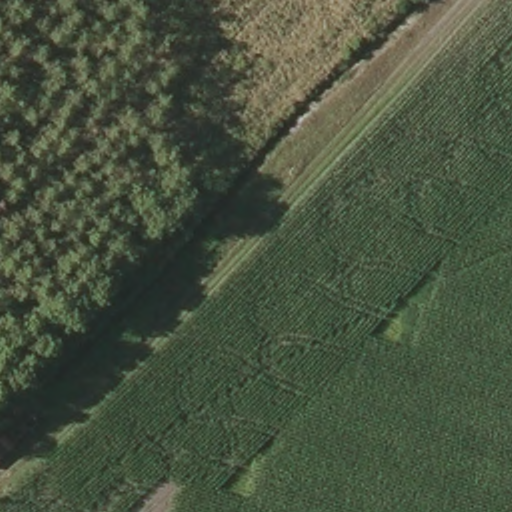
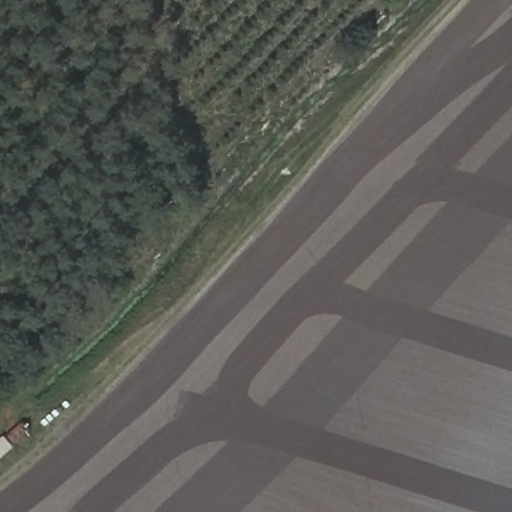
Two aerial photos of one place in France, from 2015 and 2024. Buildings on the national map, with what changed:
unchanged [(22,423),(30,434),(0,460),(0,442),(22,423)]

